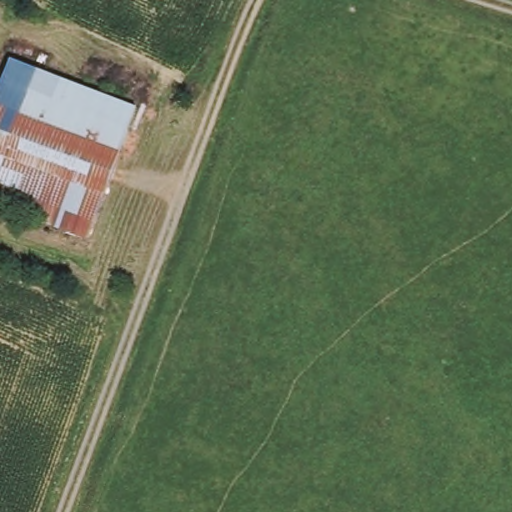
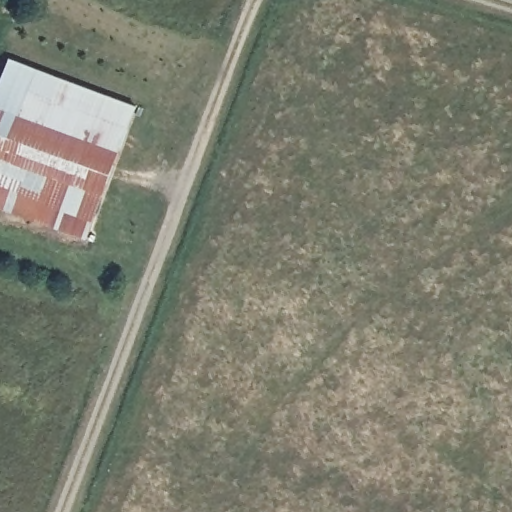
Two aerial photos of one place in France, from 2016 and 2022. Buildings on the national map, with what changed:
unchanged [(0,91),(11,62),(134,110),(85,241),(0,208),(0,91)]

